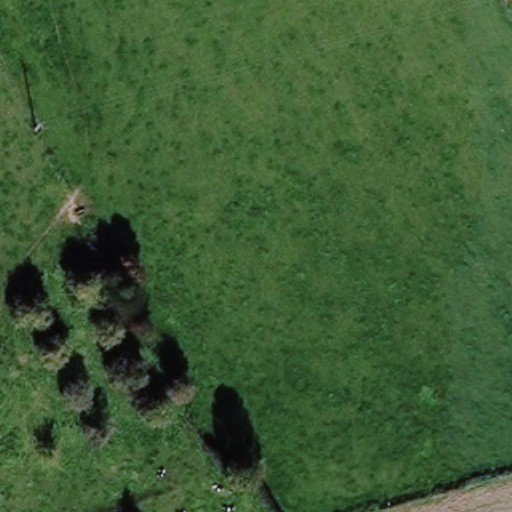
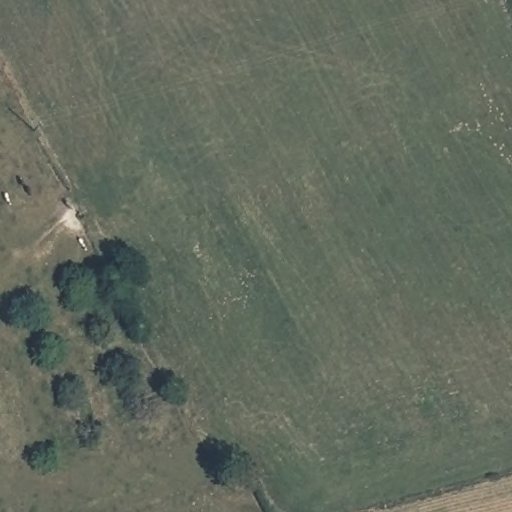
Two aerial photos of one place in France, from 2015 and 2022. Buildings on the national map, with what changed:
[]

